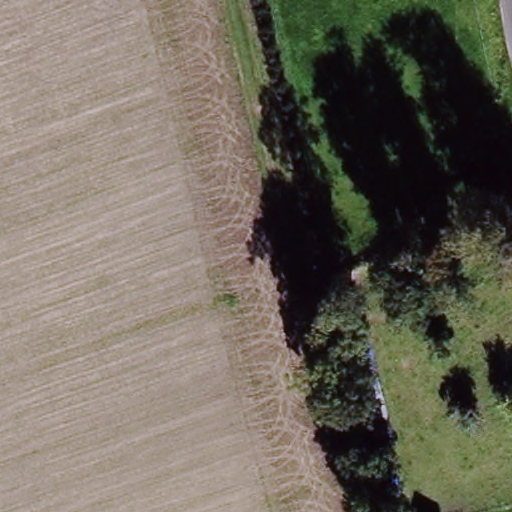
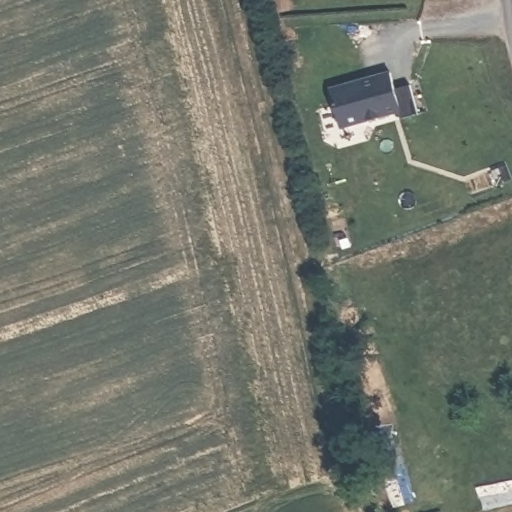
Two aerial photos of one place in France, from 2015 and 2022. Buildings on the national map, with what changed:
new [(390,71),(394,82),(410,81),(419,111),(402,117),(401,111),(342,130),(330,86),(390,71)]

